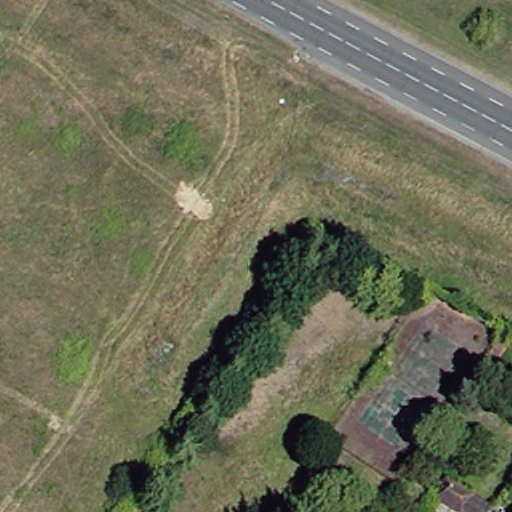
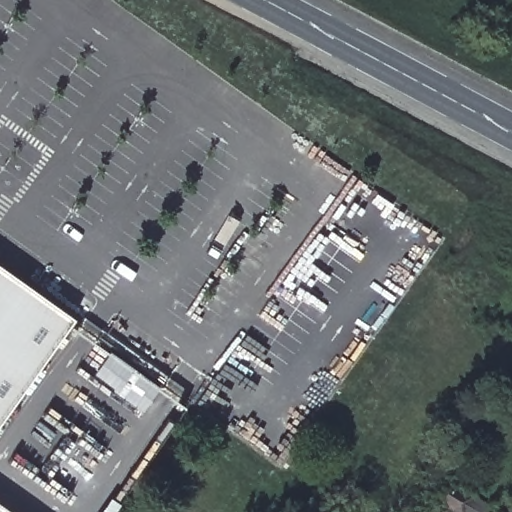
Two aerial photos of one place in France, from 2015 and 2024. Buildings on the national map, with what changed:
new [(0,422),(0,265),(75,316),(0,422)]
unchanged [(488,356),(502,335),(509,340),(495,360),(488,356)]
new [(92,376),(110,350),(161,386),(142,412),(92,376)]
unchanged [(435,497),(447,478),(492,506),(488,512),(458,512),(435,497)]
new [(115,512),(100,512),(111,495),(121,502),(115,512)]
new [(0,503),(13,512),(0,512),(0,503)]

